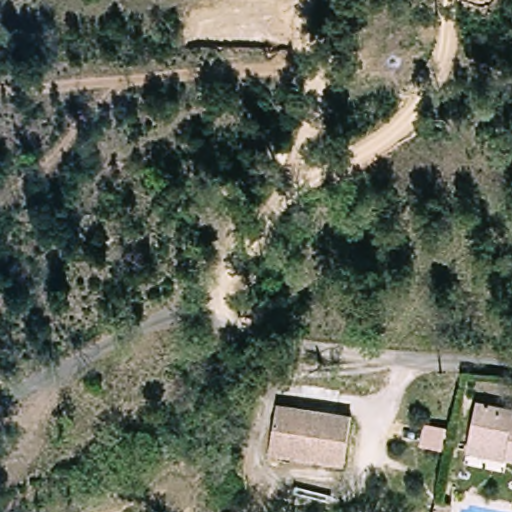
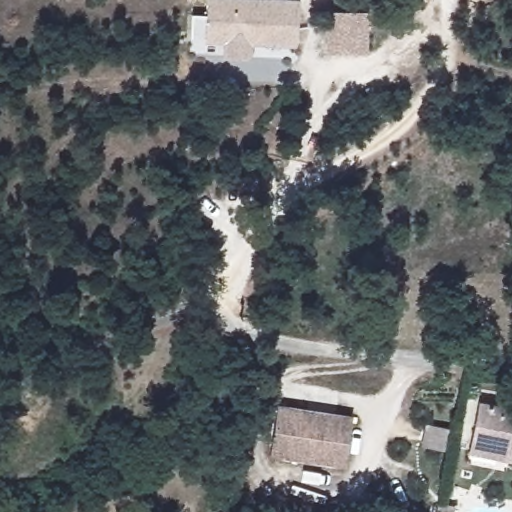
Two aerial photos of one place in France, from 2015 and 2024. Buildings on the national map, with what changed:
new [(252,44),(250,56),(222,55),(222,42),(204,42),(206,0),(296,0),(295,45),(252,44)]
new [(367,55),(327,54),(327,11),(367,12),(367,55)]
unchanged [(358,416),(350,467),(278,455),(286,405),(358,416)]
unchanged [(512,414),(512,457),(472,450),(482,408),(512,414)]

